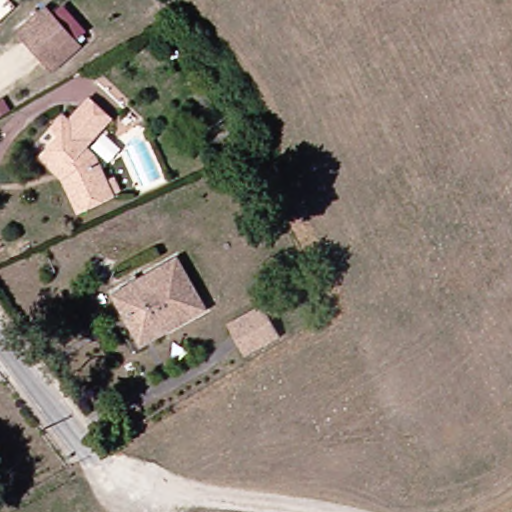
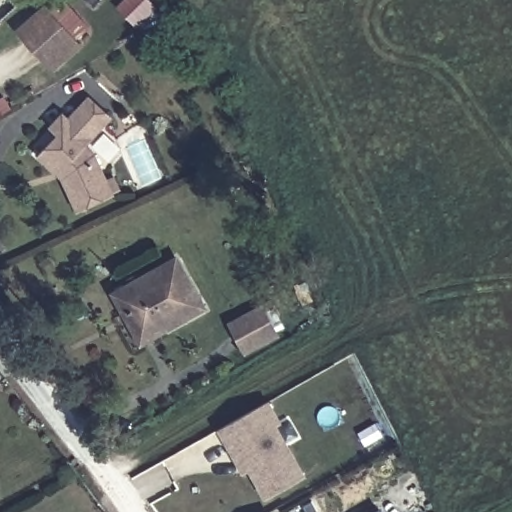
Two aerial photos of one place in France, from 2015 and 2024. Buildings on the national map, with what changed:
new [(145,0),(152,7),(136,25),(118,8),(125,0),(145,0)]
unchanged [(73,45),(48,66),(16,30),(41,8),(73,45)]
unchanged [(38,148),(52,132),(44,125),(56,111),(60,115),(79,95),(102,116),(79,142),(89,151),(106,194),(70,208),(59,178),(32,155),(38,148)]
unchanged [(117,312),(104,289),(165,254),(193,303),(140,333),(131,338),(117,312)]
unchanged [(241,352),(226,325),(257,308),(272,336),(241,352)]
new [(231,449),(220,428),(267,402),(278,422),(273,425),(303,477),(265,498),(249,469),(244,472),(231,449)]
new [(382,512),(374,512),(380,509),(382,512)]

